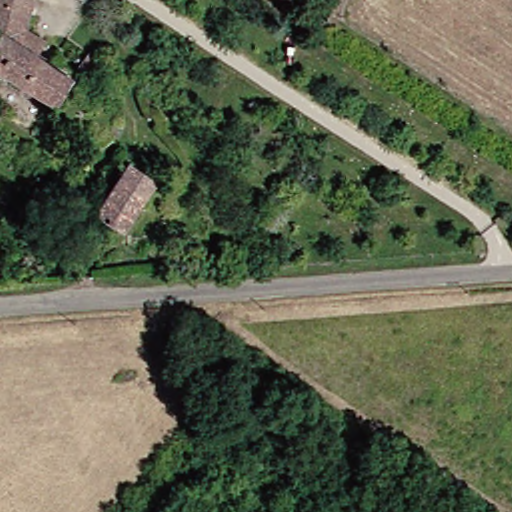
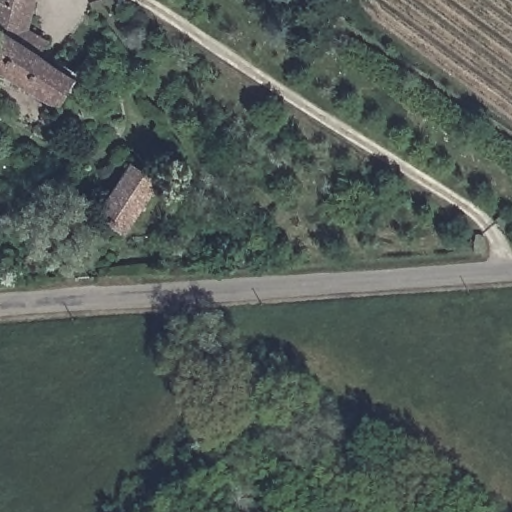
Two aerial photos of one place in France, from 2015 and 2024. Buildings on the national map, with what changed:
unchanged [(39,58),(72,77),(52,107),(0,77),(0,0),(30,0),(24,29),(42,40),(39,58)]
unchanged [(150,182),(117,235),(90,218),(123,164),(150,182)]

